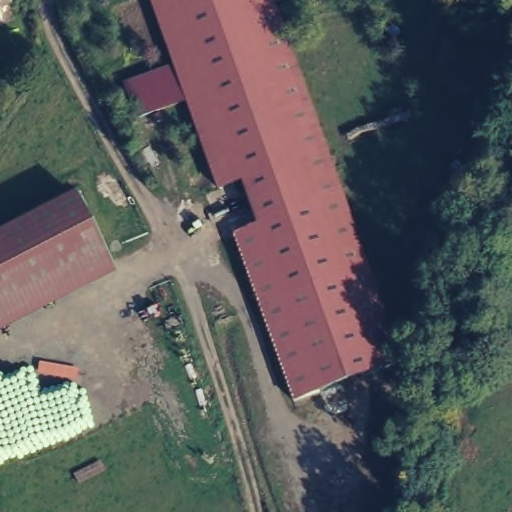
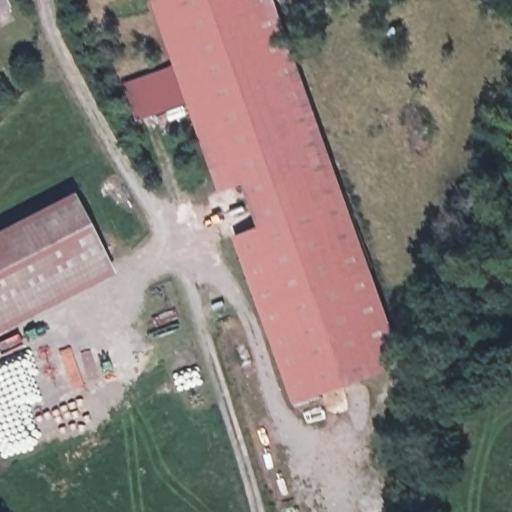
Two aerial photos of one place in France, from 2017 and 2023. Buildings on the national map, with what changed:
unchanged [(0,5),(0,0),(1,0),(3,4),(0,5)]
unchanged [(173,62),(152,0),(263,0),(283,55),(293,52),(365,263),(257,301),(232,230),(258,220),(243,175),(215,184),(185,97),(137,113),(126,79),(173,62)]
unchanged [(0,334),(0,229),(73,192),(117,274),(0,334)]
unchanged [(400,365),(294,405),(257,301),(365,263),(400,365)]

